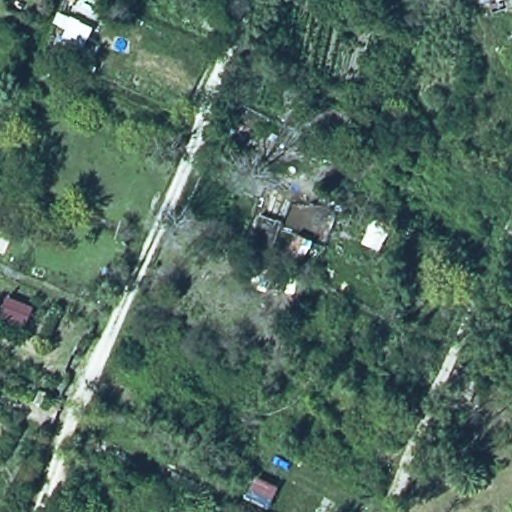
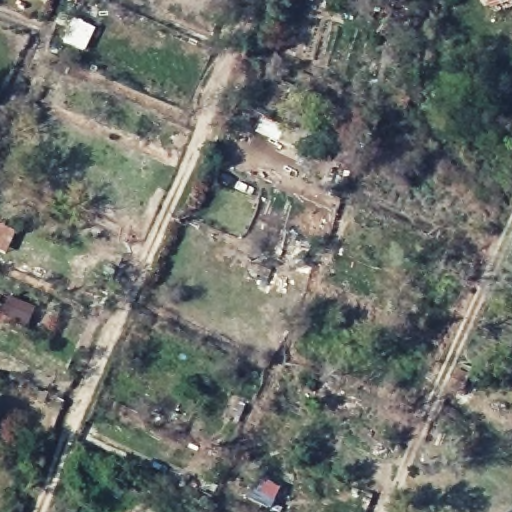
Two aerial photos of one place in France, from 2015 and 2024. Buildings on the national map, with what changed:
unchanged [(370,0),(373,0),(372,2),(370,0)]
unchanged [(59,20),(93,33),(85,57),(60,47),(64,35),(54,31),(59,20)]
unchanged [(315,132),(305,155),(266,139),(275,113),(315,132)]
unchanged [(488,373),(472,412),(441,400),(460,357),(488,373)]
unchanged [(219,482),(211,503),(159,484),(168,460),(219,482)]

